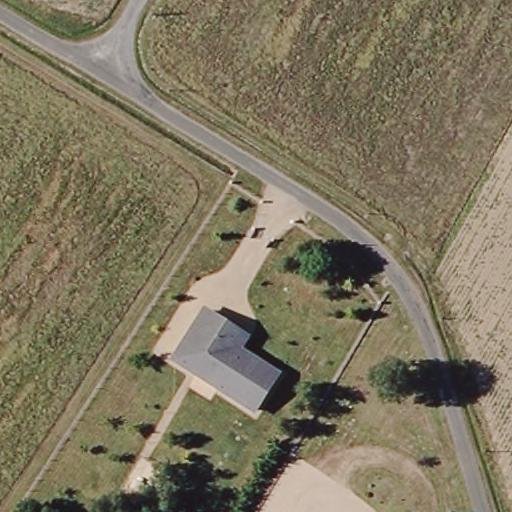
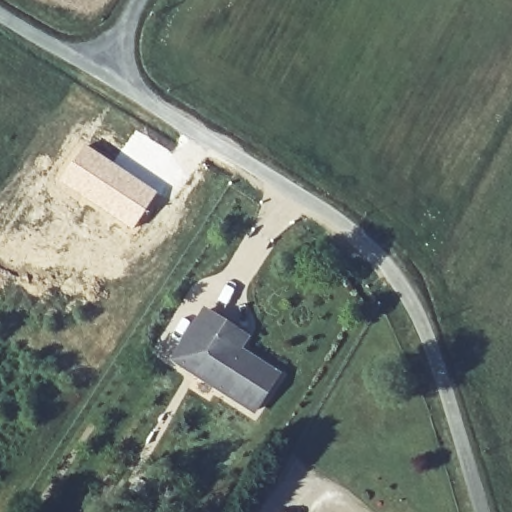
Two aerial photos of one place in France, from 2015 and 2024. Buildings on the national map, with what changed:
new [(85,144),(158,192),(133,231),(58,182),(85,144)]
unchanged [(255,414),(175,362),(206,313),(229,328),(248,339),(240,352),(279,377),(255,414)]

